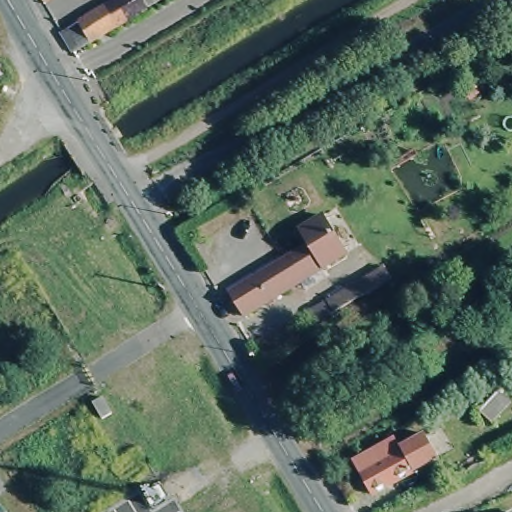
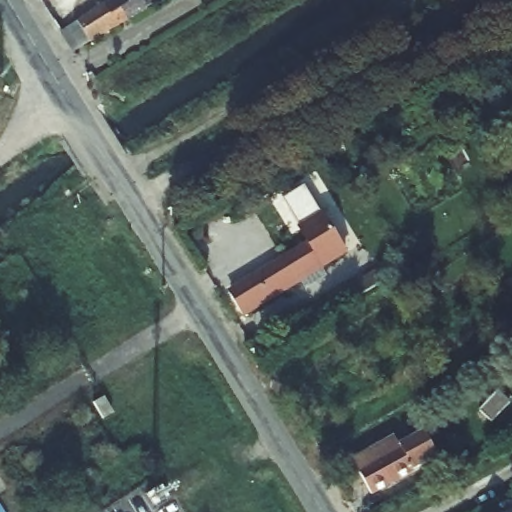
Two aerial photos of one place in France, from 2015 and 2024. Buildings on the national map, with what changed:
unchanged [(114,0),(160,0),(73,52),(61,32),(114,0)]
unchanged [(221,302),(301,252),(290,235),(312,221),(336,258),(234,322),(221,302)]
unchanged [(327,301),(384,267),(391,278),(334,312),(327,301)]
unchanged [(497,392),(509,403),(491,423),(479,412),(497,392)]
unchanged [(415,475),(374,494),(355,462),(397,438),(415,475)]
unchanged [(460,468),(465,466),(464,464),(474,458),(478,466),(464,474),(460,468)]

